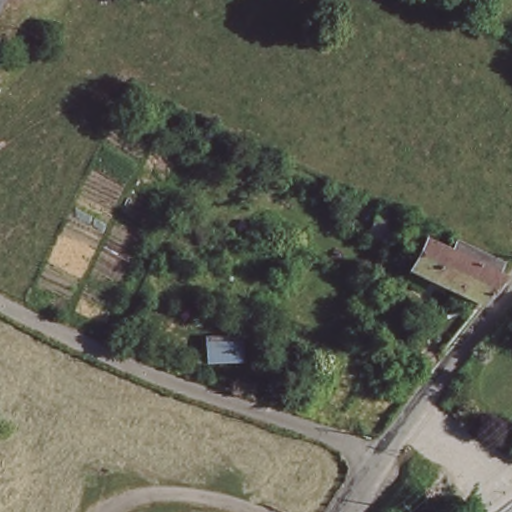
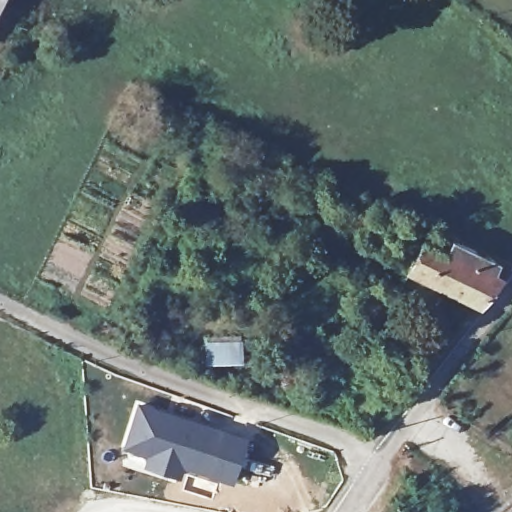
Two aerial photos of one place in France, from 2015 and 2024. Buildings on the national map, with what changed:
unchanged [(389,222),(379,241),(358,230),(368,210),(389,222)]
unchanged [(499,275),(477,299),(477,300),(411,265),(423,238),(499,275)]
unchanged [(243,365),(206,366),(206,340),(241,339),(243,365)]
new [(184,469),(181,477),(143,466),(146,455),(121,447),(138,401),(221,428),(248,438),(233,482),(184,469)]

